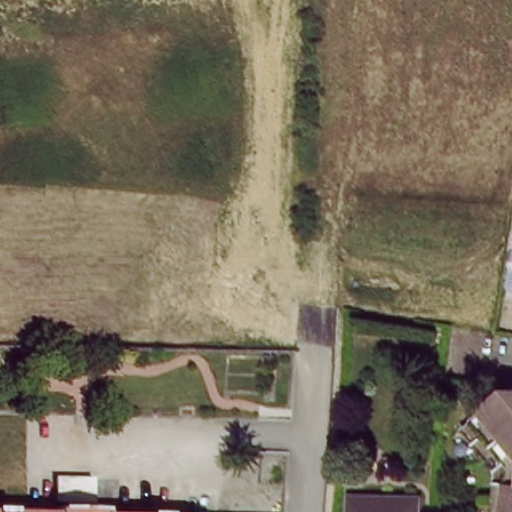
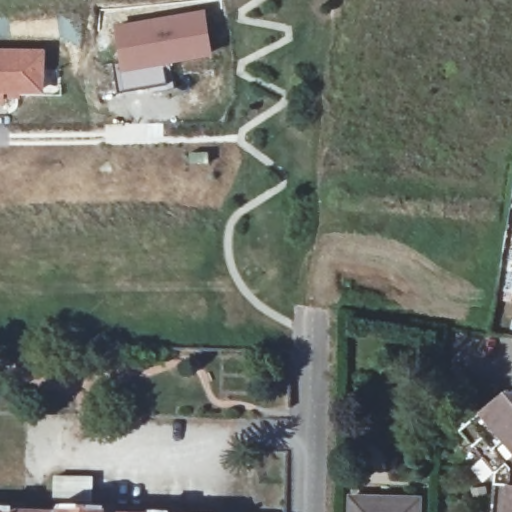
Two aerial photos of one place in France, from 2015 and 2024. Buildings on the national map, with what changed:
new [(205,9),(215,54),(124,71),(115,24),(205,9)]
new [(46,50),(45,94),(22,93),(21,98),(8,99),(9,92),(3,92),(3,102),(0,102),(0,50),(46,50)]
unchanged [(466,430),(476,422),(488,412),(512,391),(512,512),(502,512),(504,478),(466,430)]
unchanged [(420,512),(351,512),(352,499),(420,503),(420,512)]
unchanged [(69,512),(57,512),(57,511),(69,512)]

